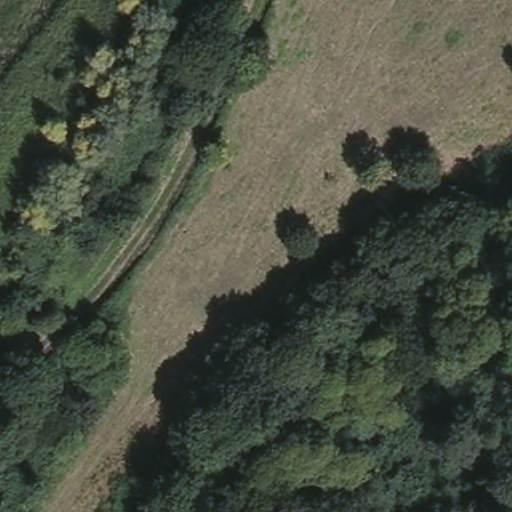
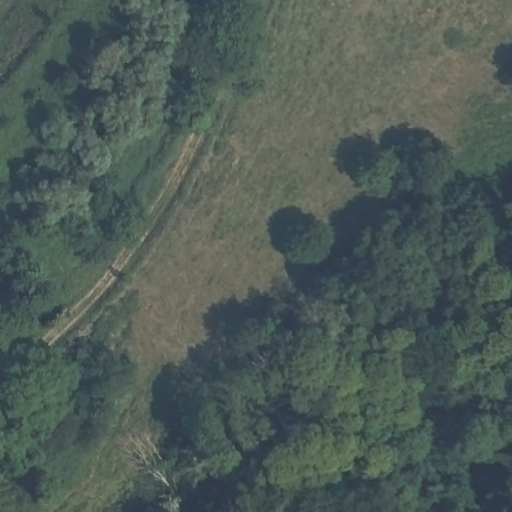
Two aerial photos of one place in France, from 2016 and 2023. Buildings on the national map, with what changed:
[]

